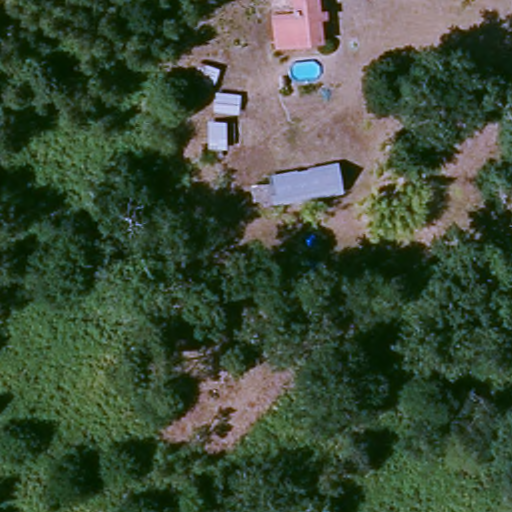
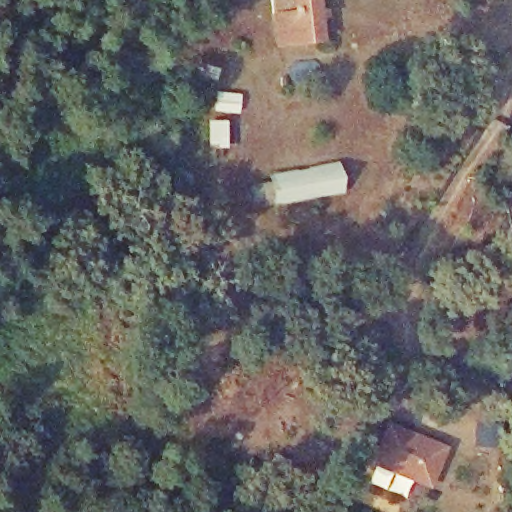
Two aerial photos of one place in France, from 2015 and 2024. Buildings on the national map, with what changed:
unchanged [(325,34),(281,39),(279,32),(283,31),(279,16),(274,17),(270,0),(318,0),(325,34)]
unchanged [(226,147),(232,175),(219,178),(214,150),(226,147)]
unchanged [(344,192),(274,204),(269,176),(338,161),(344,192)]
new [(369,464),(386,422),(447,447),(429,488),(369,464)]

